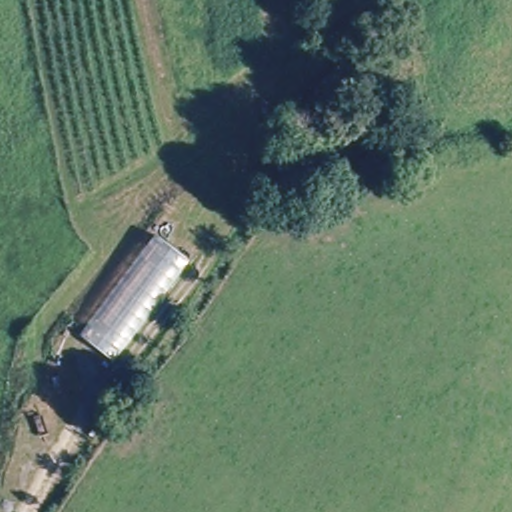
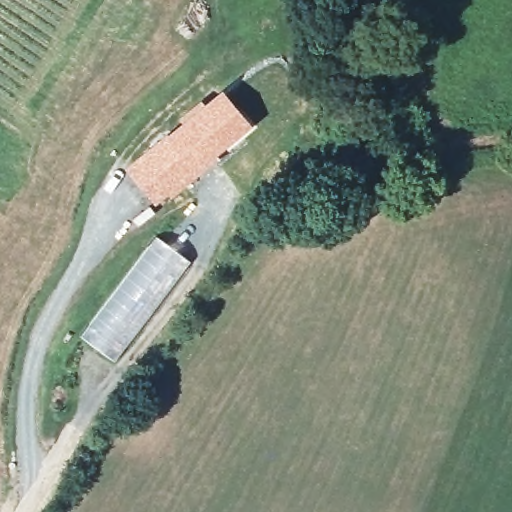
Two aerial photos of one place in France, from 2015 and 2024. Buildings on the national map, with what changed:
new [(122,168),(166,133),(181,122),(177,117),(202,97),(206,101),(221,88),(251,126),(217,154),(221,158),(202,172),(203,174),(171,197),(169,194),(155,205),(122,168)]
unchanged [(157,237),(190,262),(113,363),(81,337),(157,237)]

